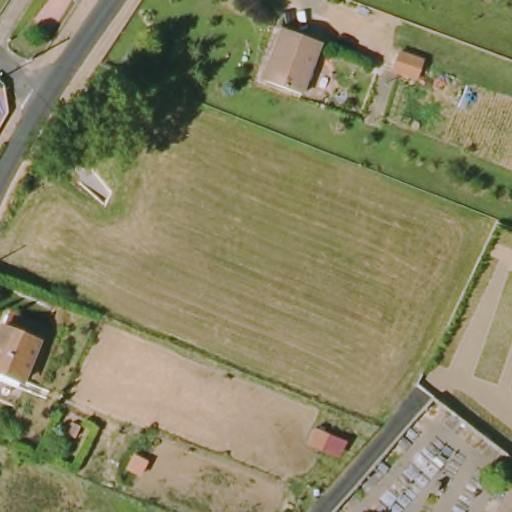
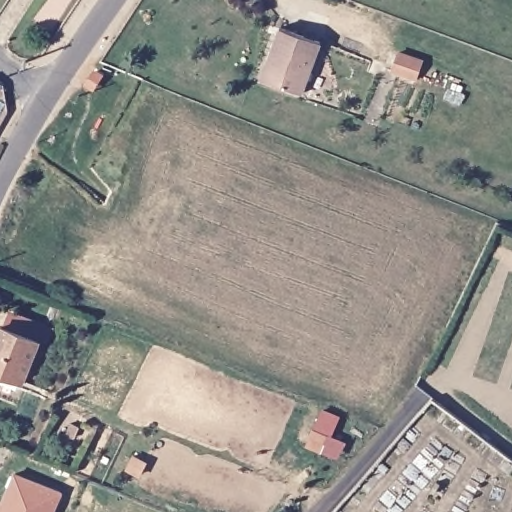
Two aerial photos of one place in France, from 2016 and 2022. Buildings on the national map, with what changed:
unchanged [(262,60),(272,31),(313,46),(296,96),(262,85),(255,82),(262,60)]
unchanged [(400,49),(423,59),(414,79),(391,69),(400,49)]
unchanged [(33,342),(16,380),(0,374),(0,328),(33,342)]
new [(14,470),(62,491),(54,512),(0,512),(0,507),(14,470)]

